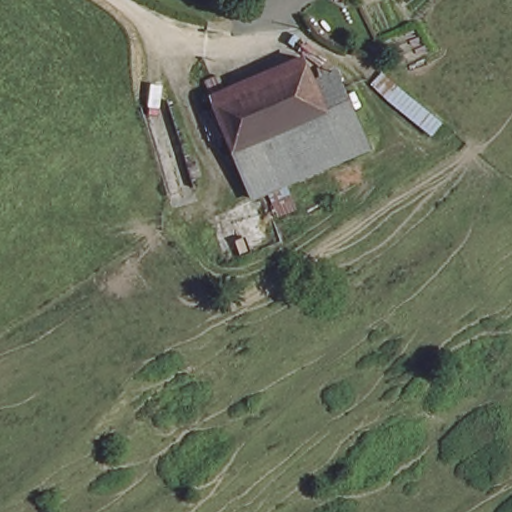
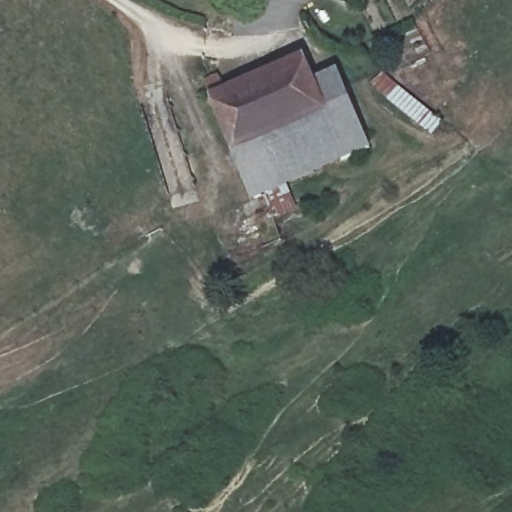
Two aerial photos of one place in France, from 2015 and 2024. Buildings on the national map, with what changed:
unchanged [(304,47),(308,57),(216,95),(212,86),(304,47)]
unchanged [(308,57),(317,80),(325,100),(233,138),(216,95),(308,57)]
unchanged [(325,100),(317,80),(336,72),(370,151),(258,201),(233,138),(325,100)]

